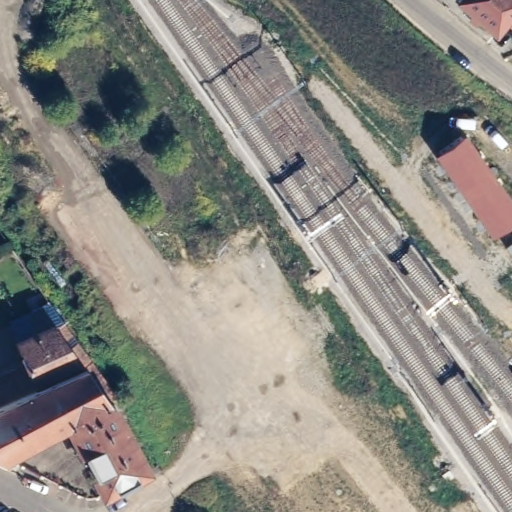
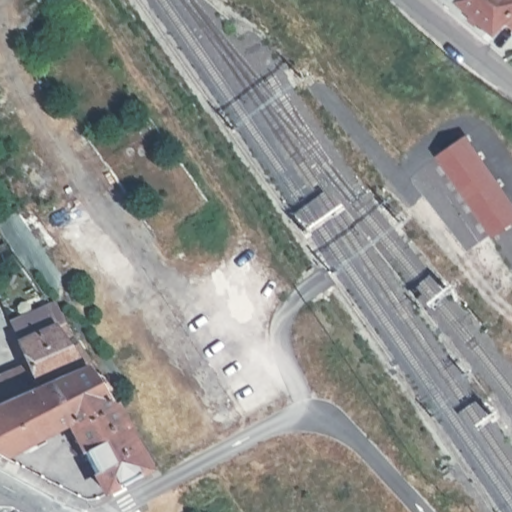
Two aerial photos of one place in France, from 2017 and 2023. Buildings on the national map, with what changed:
unchanged [(495,32),(479,19),(475,23),(469,18),(473,14),(458,0),(512,0),(512,27),(505,21),(495,32)]
unchanged [(512,224),(492,237),(435,155),(467,135),(512,201),(512,224)]
unchanged [(59,328),(88,367),(0,406),(0,379),(10,374),(11,376),(23,370),(13,347),(59,328)]
unchanged [(112,401),(103,408),(105,411),(108,409),(144,476),(100,499),(67,435),(69,433),(65,427),(0,461),(0,406),(88,367),(112,401)]

